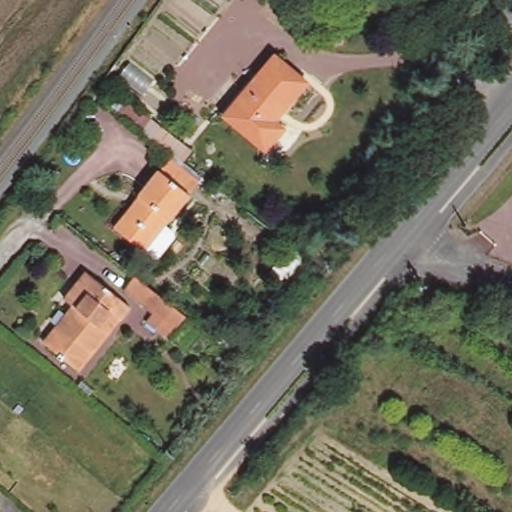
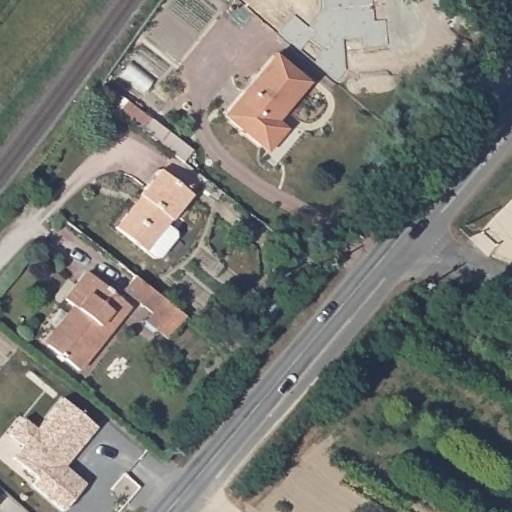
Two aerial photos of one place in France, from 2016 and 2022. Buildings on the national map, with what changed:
unchanged [(273,56),(307,83),(271,125),(281,134),(266,152),(223,116),(273,56)]
unchanged [(191,150),(182,162),(104,101),(112,89),(191,150)]
unchanged [(169,222),(168,221),(164,226),(172,233),(174,239),(159,258),(152,259),(144,252),(113,227),(138,196),(137,195),(157,170),(159,171),(168,159),(197,181),(187,194),(190,196),(169,222)]
unchanged [(221,194),(216,200),(200,188),(205,182),(221,194)]
unchanged [(300,261),(284,286),(267,276),(284,250),(300,261)]
unchanged [(130,307),(79,371),(45,345),(75,308),(62,299),(85,271),(130,307)]
unchanged [(145,321),(151,314),(122,290),(134,276),(185,316),(174,331),(167,339),(145,321)]
new [(22,420),(36,431),(61,399),(96,427),(65,467),(86,484),(65,512),(33,487),(38,480),(12,460),(22,447),(10,437),(22,420)]

